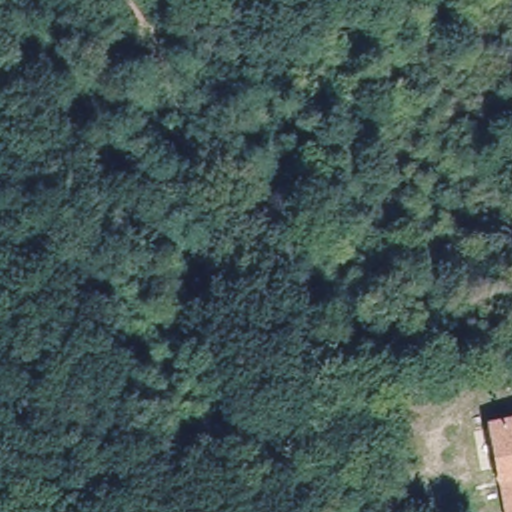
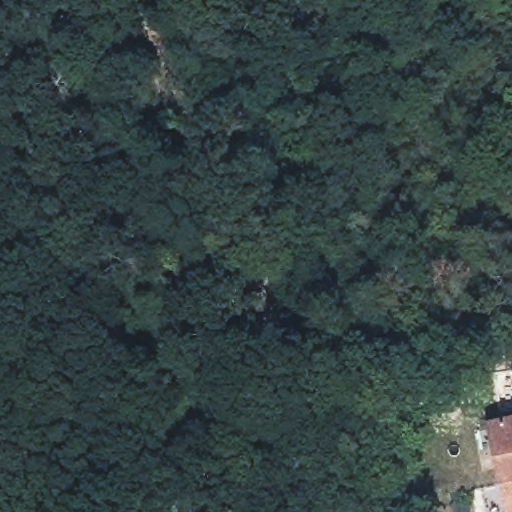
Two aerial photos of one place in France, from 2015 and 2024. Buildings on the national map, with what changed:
unchanged [(512,512),(510,512),(498,427),(512,426),(512,512)]

